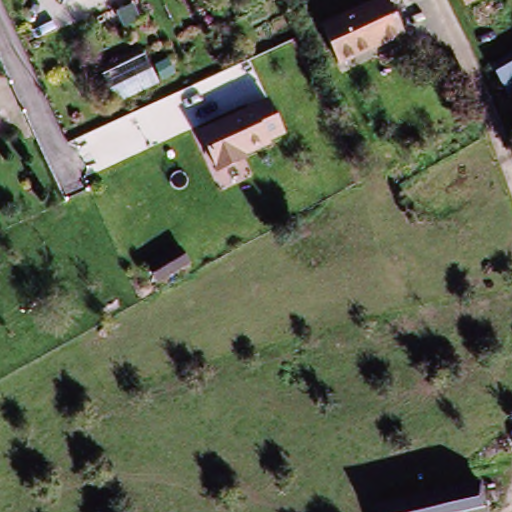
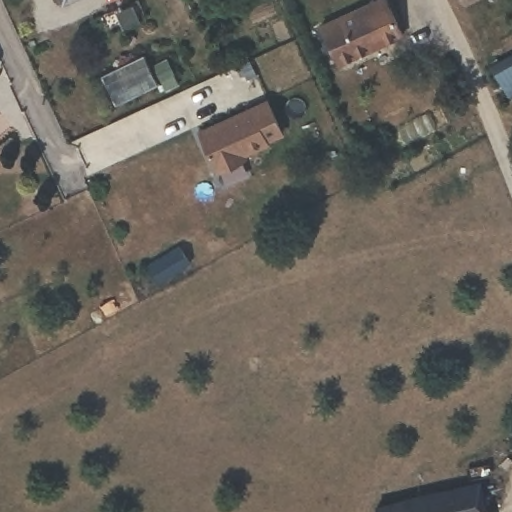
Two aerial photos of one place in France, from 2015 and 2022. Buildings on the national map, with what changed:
unchanged [(60,4),(58,0),(68,0),(60,4)]
unchanged [(342,63),(325,25),(380,0),(391,0),(407,35),(342,63)]
unchanged [(462,0),(484,0),(467,9),(462,0)]
unchanged [(147,56),(160,85),(117,104),(104,75),(147,56)]
unchanged [(483,78),(503,68),(512,63),(512,85),(492,96),(483,78)]
unchanged [(240,156),(241,160),(223,169),(205,131),(272,100),(286,130),(270,137),(272,141),(240,156)]
unchanged [(506,114),(512,111),(512,124),(506,114)]
unchanged [(155,261),(192,241),(204,261),(166,281),(155,261)]
unchanged [(479,477),(490,512),(488,512),(374,512),(373,508),(479,477)]

